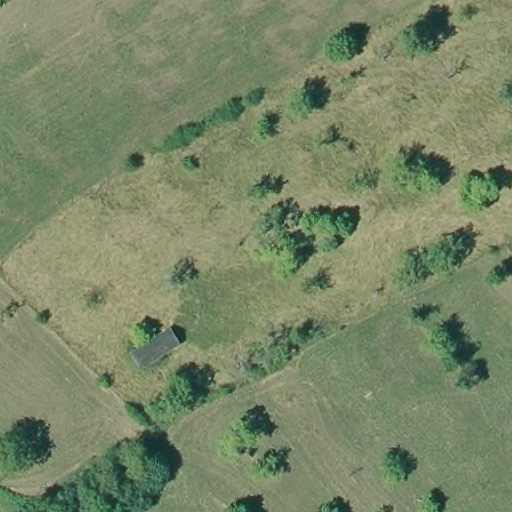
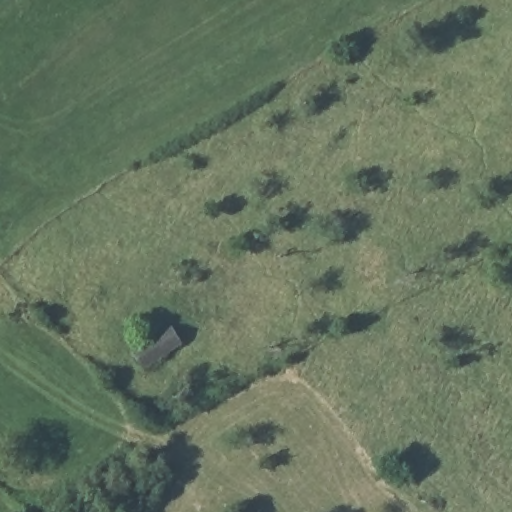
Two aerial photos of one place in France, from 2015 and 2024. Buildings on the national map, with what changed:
unchanged [(129,353),(164,329),(178,347),(138,375),(129,353)]

